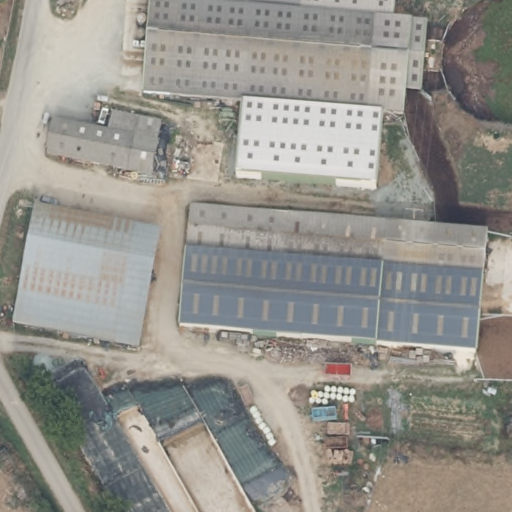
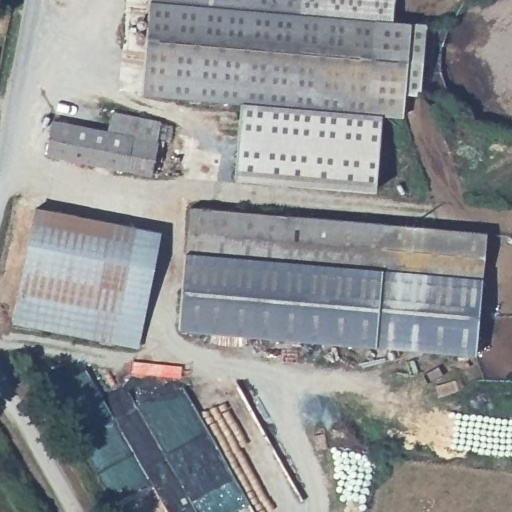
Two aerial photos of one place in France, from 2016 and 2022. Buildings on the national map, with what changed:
unchanged [(392,17),(428,22),(425,62),(419,95),(406,94),(404,115),(381,113),(378,190),(235,178),(242,101),(143,93),(150,0),(393,0),(392,17)]
unchanged [(144,143),(109,137),(111,119),(159,127),(149,178),(138,176),(144,143)]
unchanged [(47,159),(54,127),(109,137),(144,143),(138,176),(47,159)]
unchanged [(159,225),(137,350),(9,323),(29,203),(159,225)]
unchanged [(489,236),(476,355),(178,327),(188,207),(489,236)]

